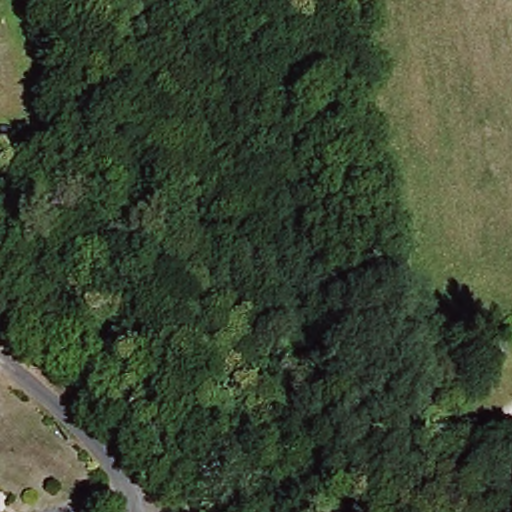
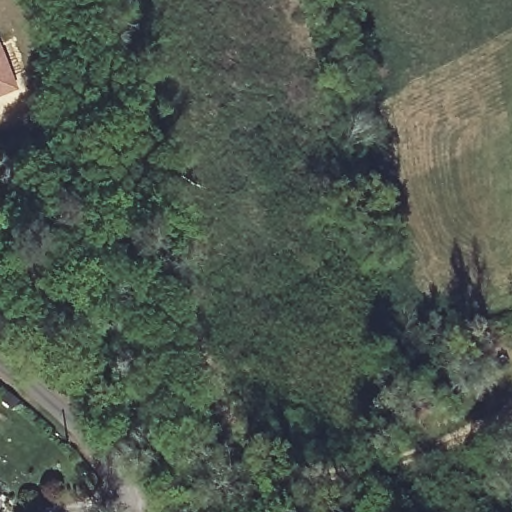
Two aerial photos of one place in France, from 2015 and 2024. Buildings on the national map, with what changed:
new [(19,90),(0,97),(0,42),(19,90)]

